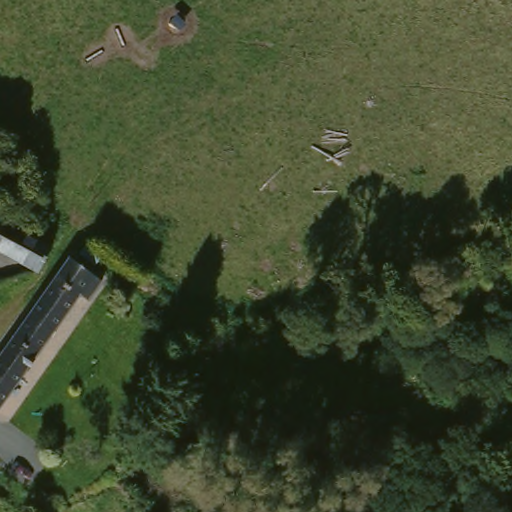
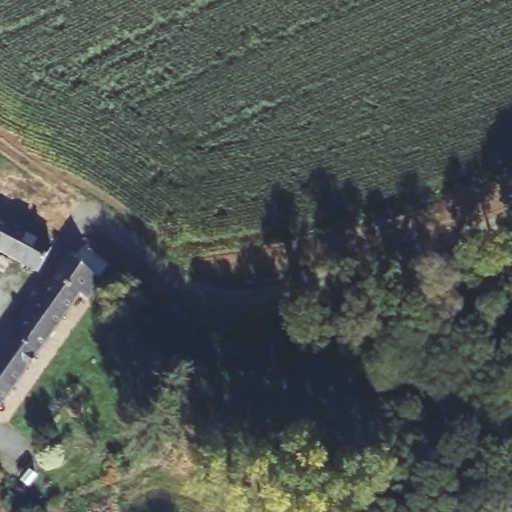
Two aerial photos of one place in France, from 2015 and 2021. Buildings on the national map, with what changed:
unchanged [(36,276),(0,260),(0,222),(51,245),(36,276)]
unchanged [(99,287),(85,306),(76,301),(0,413),(0,348),(62,263),(99,287)]

